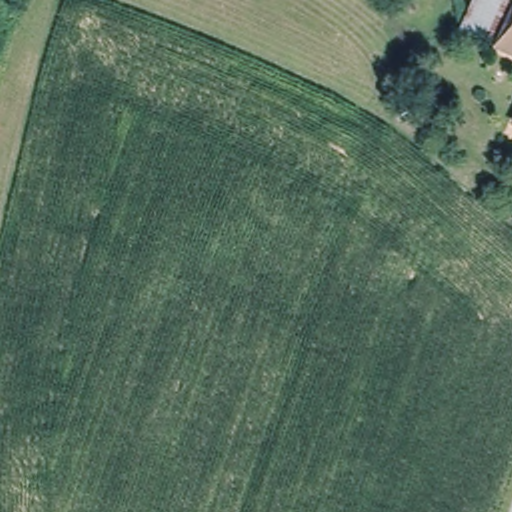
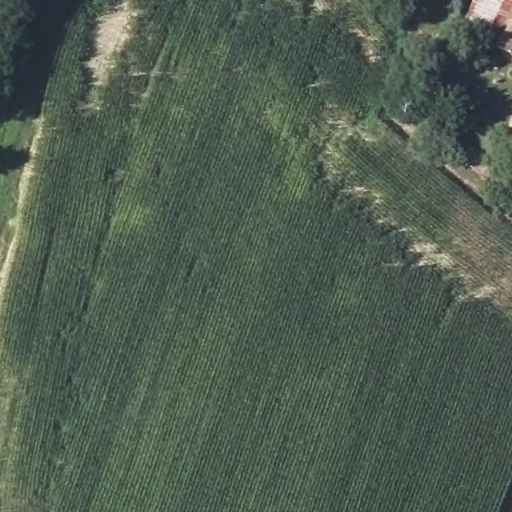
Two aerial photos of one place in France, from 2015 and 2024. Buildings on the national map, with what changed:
unchanged [(466,32),(478,4),(470,0),(507,0),(491,42),(466,32)]
unchanged [(512,0),(512,51),(491,42),(507,0),(512,0)]

